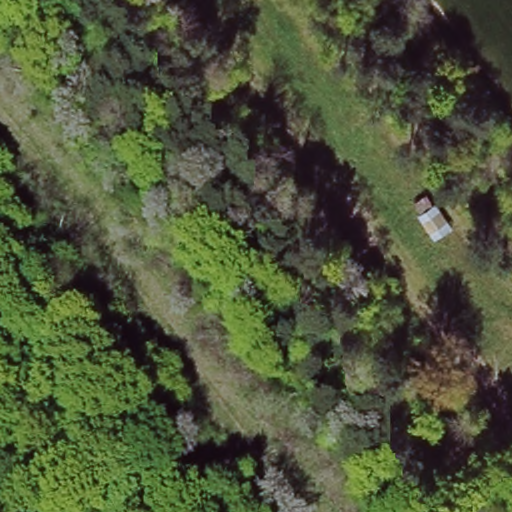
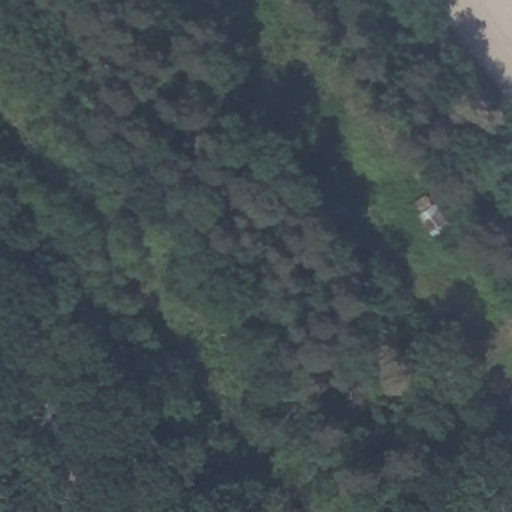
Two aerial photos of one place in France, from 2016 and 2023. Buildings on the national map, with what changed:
unchanged [(413,203),(428,193),(434,203),(437,201),(453,226),(434,238),(413,203)]

